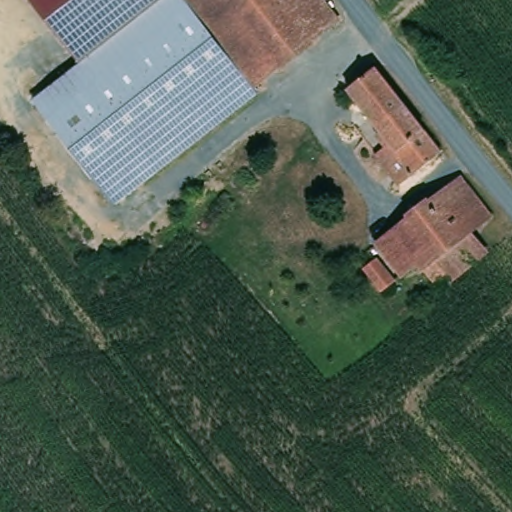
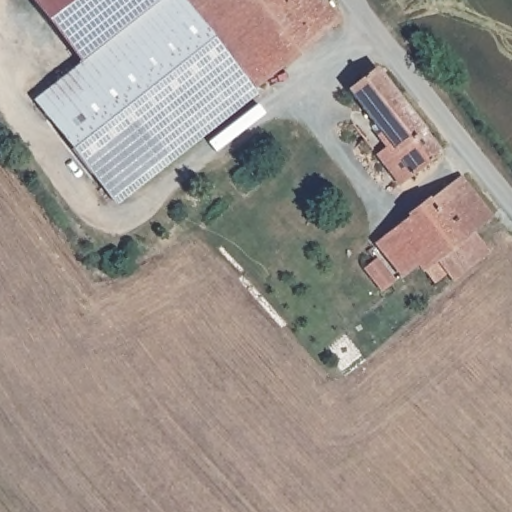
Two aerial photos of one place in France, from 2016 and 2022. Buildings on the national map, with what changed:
unchanged [(32,0),(165,0),(82,63),(32,0)]
unchanged [(258,86),(261,89),(115,206),(35,99),(165,0),(328,0),(342,18),(258,86)]
unchanged [(381,153),(395,144),(349,86),(376,64),(416,117),(442,150),(415,170),(401,179),(381,153)]
unchanged [(446,267),(433,278),(421,261),(406,273),(384,240),(463,173),(495,213),(476,228),(486,243),(450,272),(446,267)]
unchanged [(392,285),(381,293),(362,269),(373,261),(392,285)]

